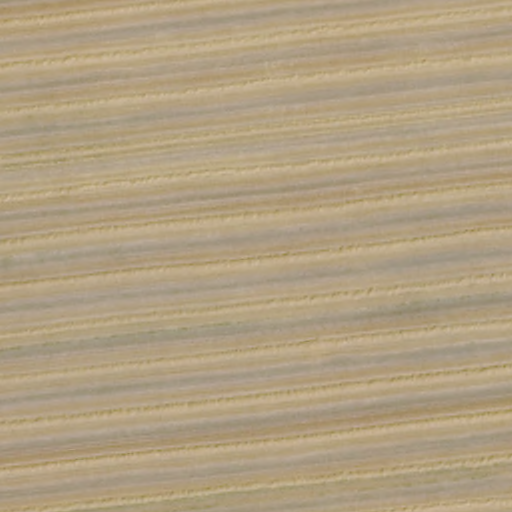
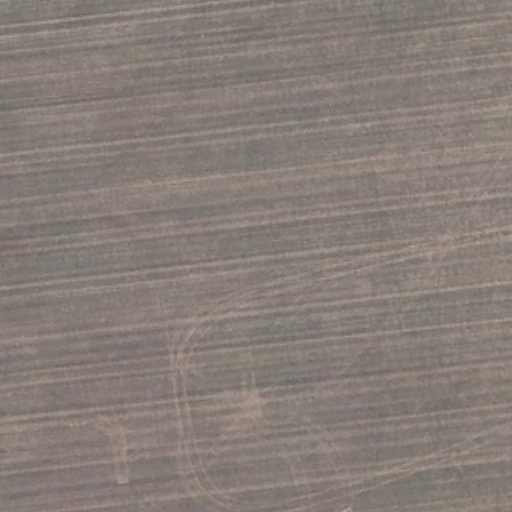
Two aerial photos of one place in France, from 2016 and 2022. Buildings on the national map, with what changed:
[]

